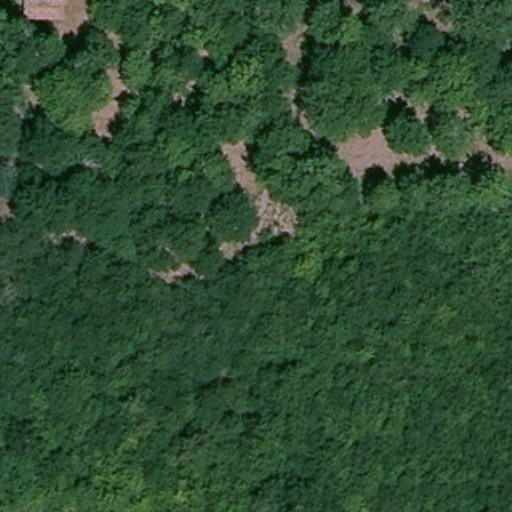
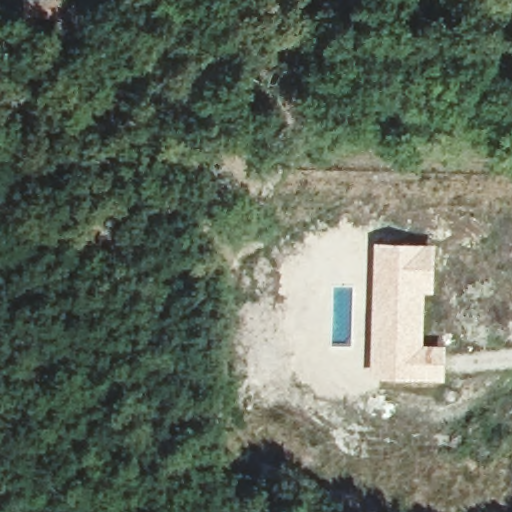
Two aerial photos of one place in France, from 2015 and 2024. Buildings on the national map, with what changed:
new [(373,242),(435,243),(432,293),(425,293),(424,344),(446,345),(444,381),(370,377),(373,242)]

